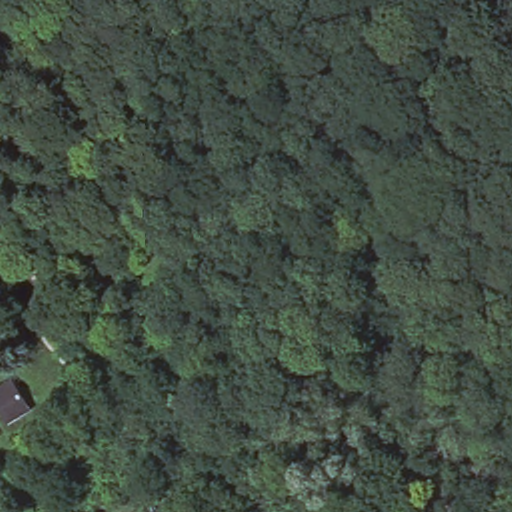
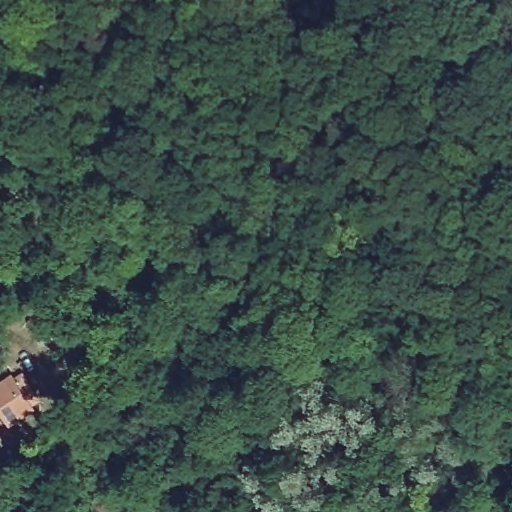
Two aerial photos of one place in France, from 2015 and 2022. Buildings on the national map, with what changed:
unchanged [(10,421),(0,405),(0,387),(10,380),(28,409),(10,421)]
unchanged [(265,400),(279,419),(270,429),(253,407),(265,400)]

